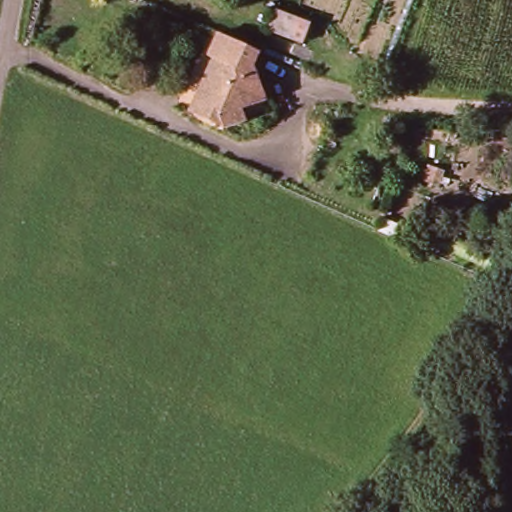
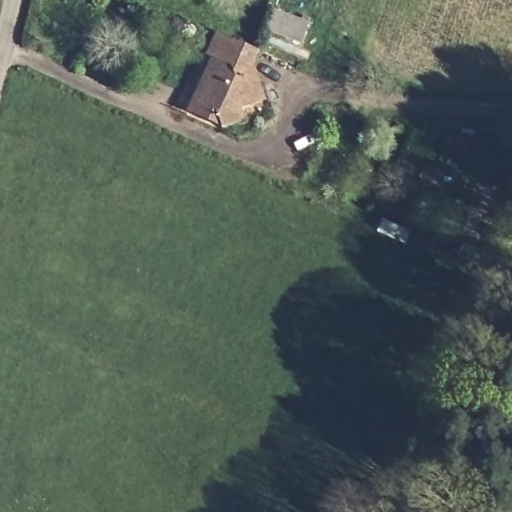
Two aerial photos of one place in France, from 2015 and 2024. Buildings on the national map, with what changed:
unchanged [(255,61),(267,98),(245,108),(248,120),(230,126),(197,111),(220,64),(225,67),(230,60),(216,54),(225,34),(260,49),(255,61)]

